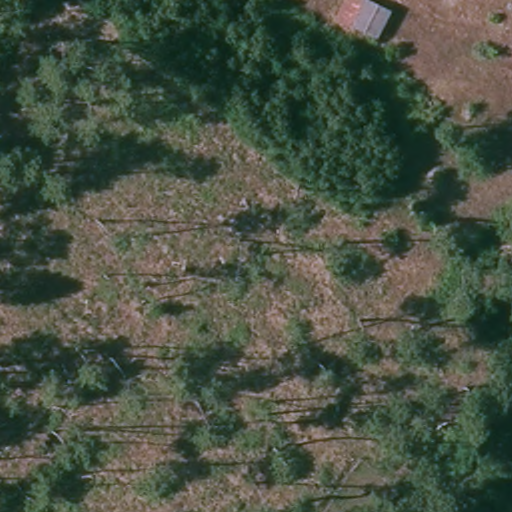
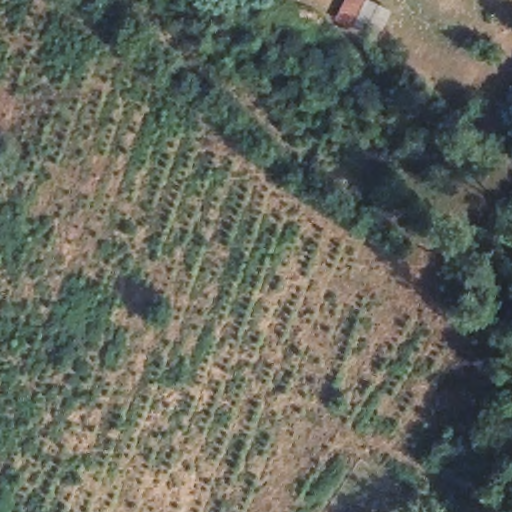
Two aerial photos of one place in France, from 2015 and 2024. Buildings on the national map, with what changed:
unchanged [(348,0),(365,0),(375,6),(391,15),(374,45),(359,36),(336,22),(348,0)]

